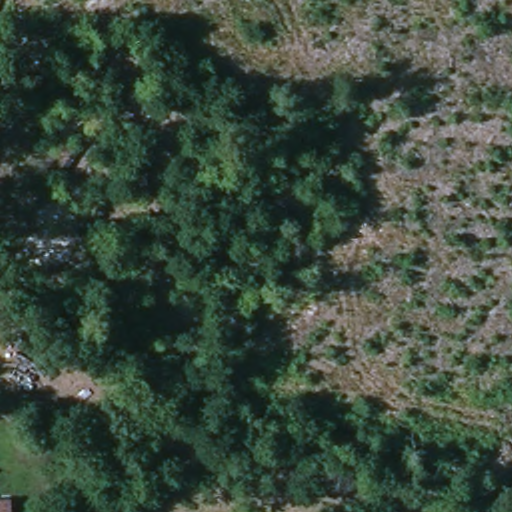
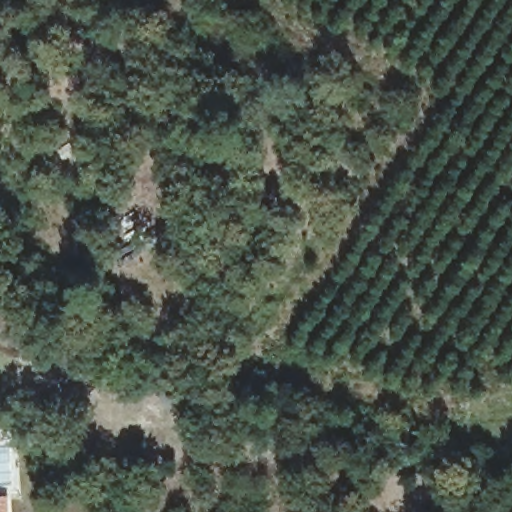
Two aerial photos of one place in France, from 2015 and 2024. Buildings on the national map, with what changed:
unchanged [(10,512),(0,512),(0,497),(9,496),(10,512)]

